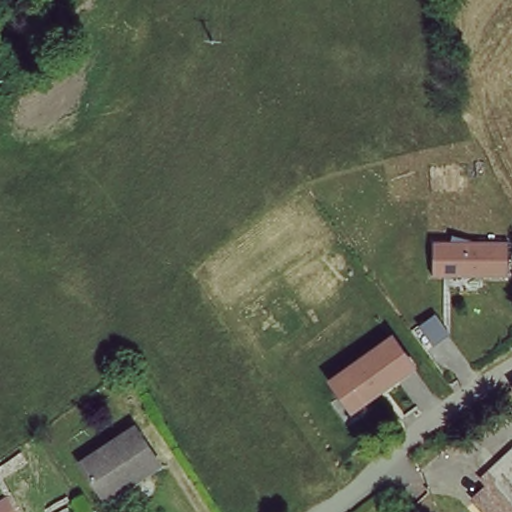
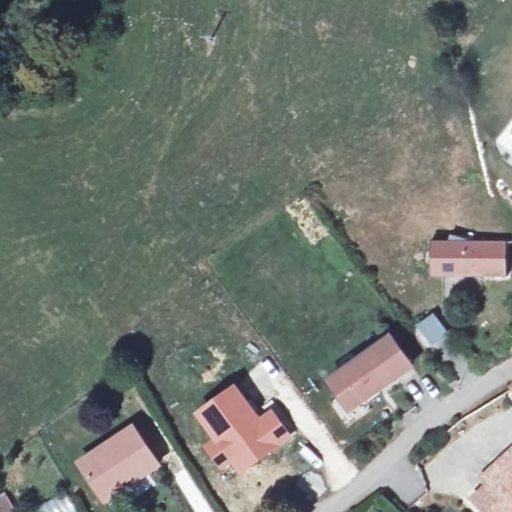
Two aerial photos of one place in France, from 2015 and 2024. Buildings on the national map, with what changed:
unchanged [(508,279),(432,278),(432,242),(508,243),(508,279)]
unchanged [(351,417),(324,381),(392,331),(418,367),(351,417)]
new [(236,384),(260,415),(271,406),(293,436),(239,475),(223,455),(215,461),(202,445),(211,438),(194,415),(236,384)]
unchanged [(78,457),(133,424),(157,461),(101,495),(78,457)]
unchanged [(512,456),(512,512),(479,512),(478,512),(479,511),(464,497),(479,482),(475,479),(506,450),(512,456)]

